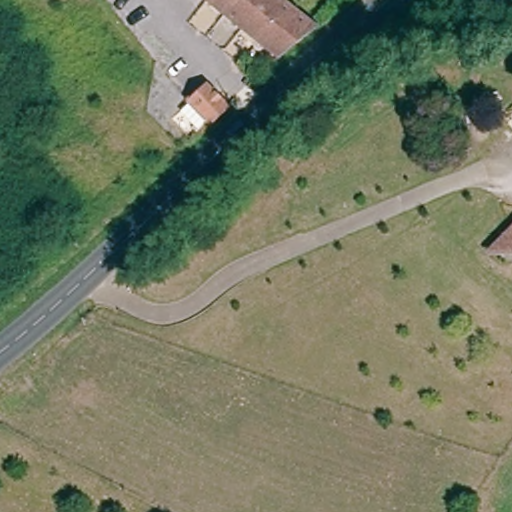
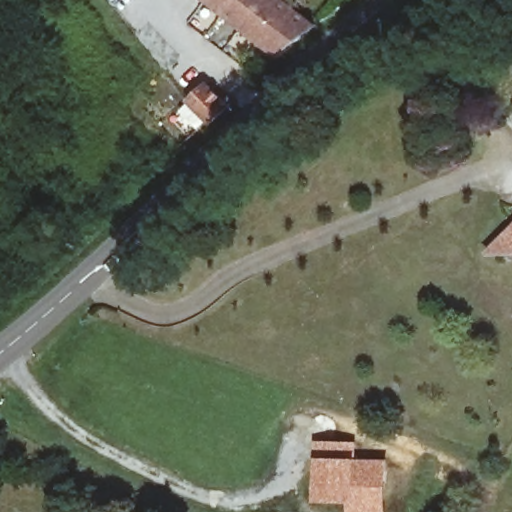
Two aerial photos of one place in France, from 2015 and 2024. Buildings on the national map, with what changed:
unchanged [(203,0),(281,0),(310,23),(276,55),(203,0)]
unchanged [(190,90),(181,99),(165,82),(174,72),(190,90)]
unchanged [(187,106),(196,97),(213,80),(236,103),(216,121),(205,108),(197,116),(187,106)]
new [(354,445),(354,463),(384,462),(384,501),(351,500),(322,500),(321,462),(320,444),(354,445)]

